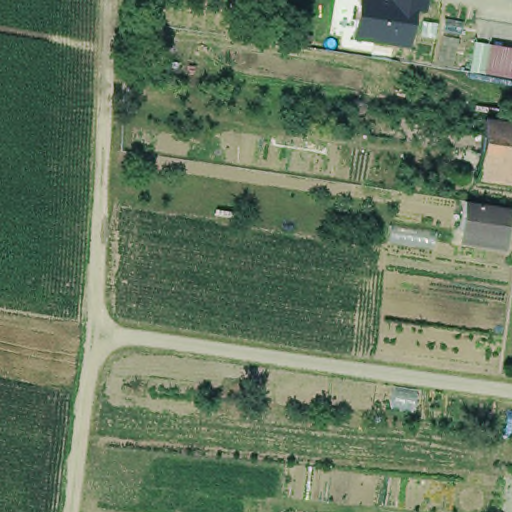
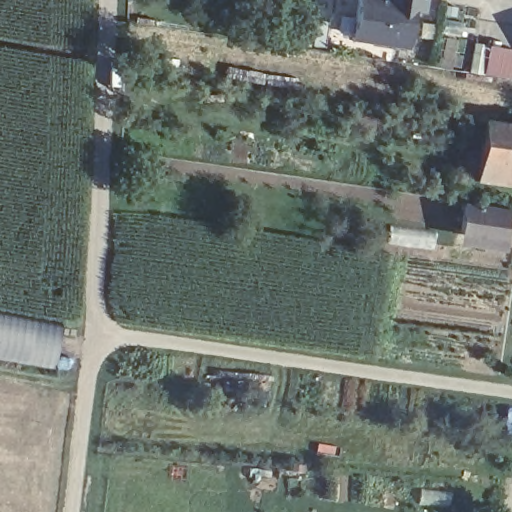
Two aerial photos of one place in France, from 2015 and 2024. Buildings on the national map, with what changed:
unchanged [(425,0),(425,5),(413,4),(407,45),(352,36),(357,0),(425,0)]
new [(512,53),(512,56),(509,76),(483,71),(487,49),(512,53)]
unchanged [(473,124),(482,125),(482,122),(512,127),(512,162),(477,157),(480,137),(471,136),(473,124)]
unchanged [(474,180),(477,162),(477,157),(512,162),(512,186),(474,180)]
unchanged [(461,220),(462,213),(507,220),(502,249),(458,242),(461,220)]
new [(63,323),(57,368),(0,359),(0,313),(63,323)]

